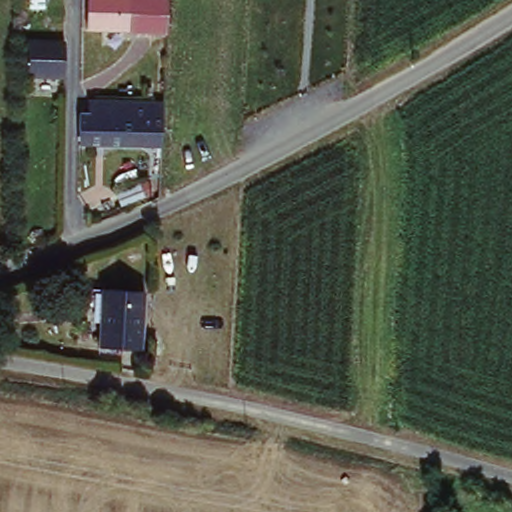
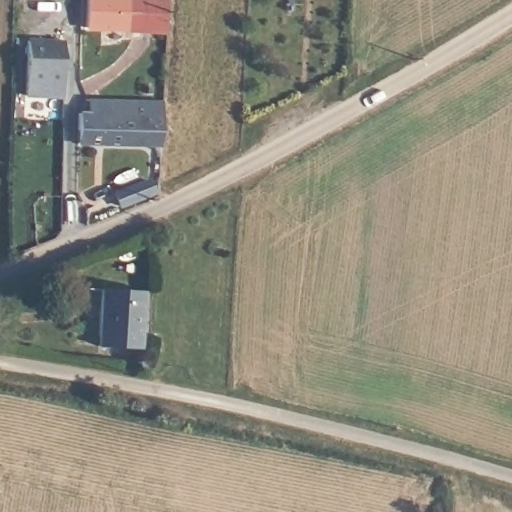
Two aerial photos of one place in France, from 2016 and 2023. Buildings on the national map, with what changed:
unchanged [(169,33),(131,32),(132,29),(91,27),(92,0),(171,0),(169,33)]
unchanged [(60,53),(59,77),(28,76),(29,52),(60,53)]
unchanged [(151,88),(150,96),(146,95),(148,88),(151,88)]
unchanged [(79,130),(79,114),(90,114),(91,101),(112,102),(163,103),(161,147),(142,147),(80,144),(79,130)]
unchanged [(146,181),(151,193),(121,207),(116,195),(146,181)]
unchanged [(123,291),(123,303),(142,304),(140,350),(97,347),(101,290),(123,291)]

